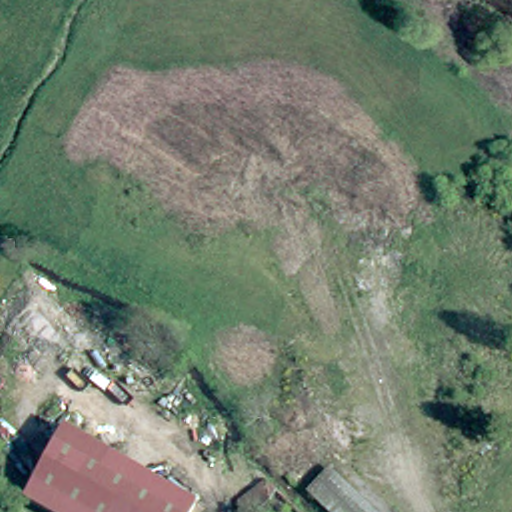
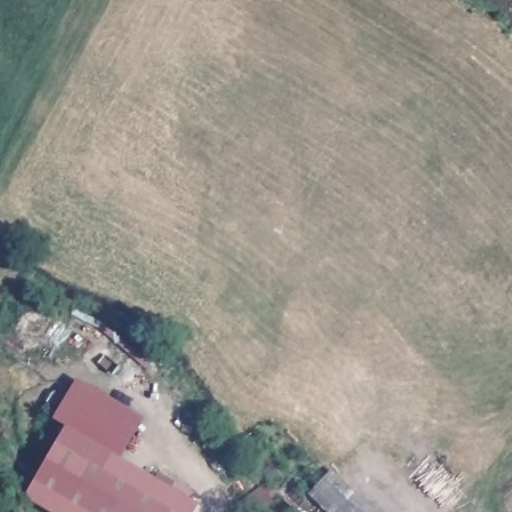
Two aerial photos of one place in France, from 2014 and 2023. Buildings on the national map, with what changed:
new [(67,423),(55,417),(77,380),(143,418),(122,457),(67,423)]
unchanged [(195,512),(50,512),(23,497),(67,423),(200,503),(195,512)]
new [(315,497),(310,492),(330,468),(377,512),(370,512),(333,477),(315,497)]
unchanged [(370,512),(330,512),(315,497),(333,477),(370,512)]
demolished [(269,486),(280,496),(275,506),(267,512),(241,512),(240,508),(269,486)]

